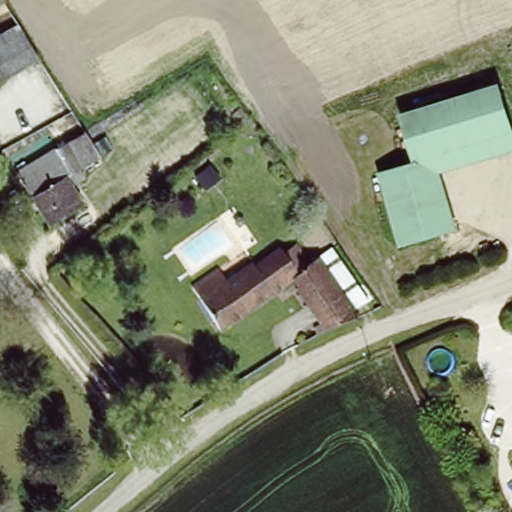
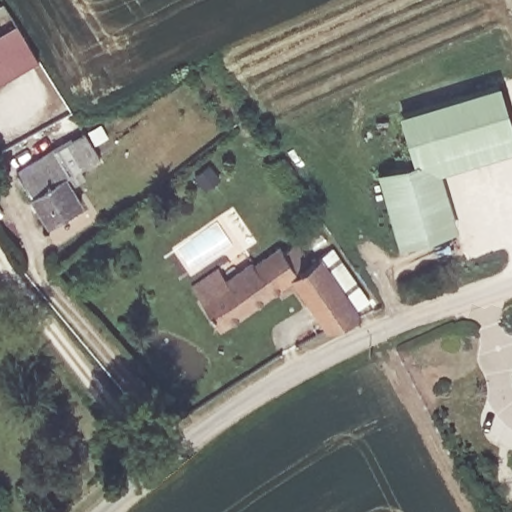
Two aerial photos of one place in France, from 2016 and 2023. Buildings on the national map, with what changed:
unchanged [(0,37),(18,27),(38,60),(0,83),(0,37)]
unchanged [(512,131),(512,152),(446,173),(459,230),(397,248),(376,172),(412,163),(399,111),(499,82),(512,131)]
unchanged [(83,129),(99,153),(81,164),(86,174),(73,183),(83,199),(51,220),(18,168),(83,129)]
unchanged [(296,287),(220,335),(200,304),(191,290),(218,273),(228,287),(281,253),(297,276),(320,261),(331,253),(368,305),(356,313),(361,321),(329,336),(296,287)]

